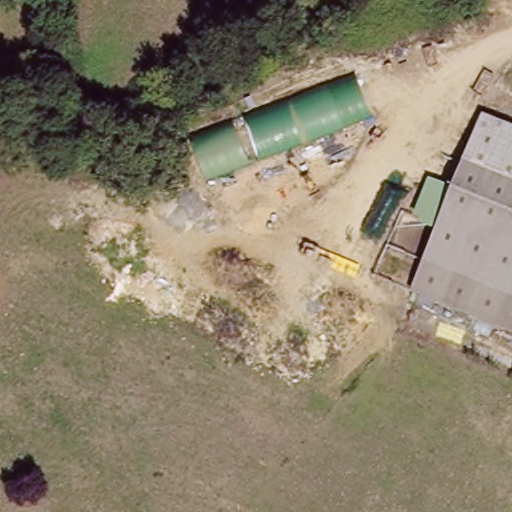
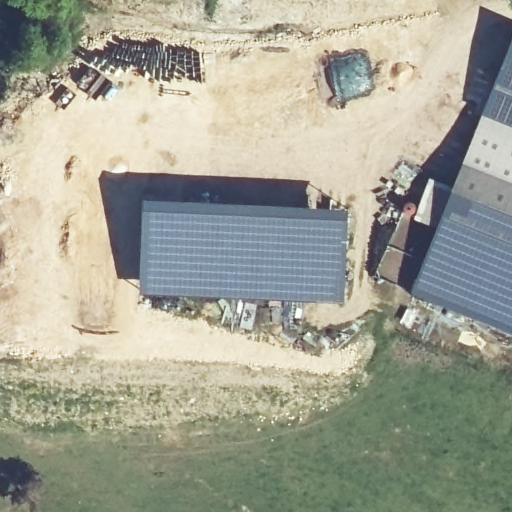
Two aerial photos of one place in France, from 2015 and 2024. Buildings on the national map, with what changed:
new [(482,116),(512,43),(512,128),(482,116)]
demolished [(377,118),(208,182),(191,138),(358,71),(377,118)]
unchanged [(512,128),(512,331),(412,291),(482,116),(512,128)]
unchanged [(412,220),(430,173),(455,182),(436,229),(412,220)]
new [(147,196),(351,207),(345,300),(140,290),(147,196)]

